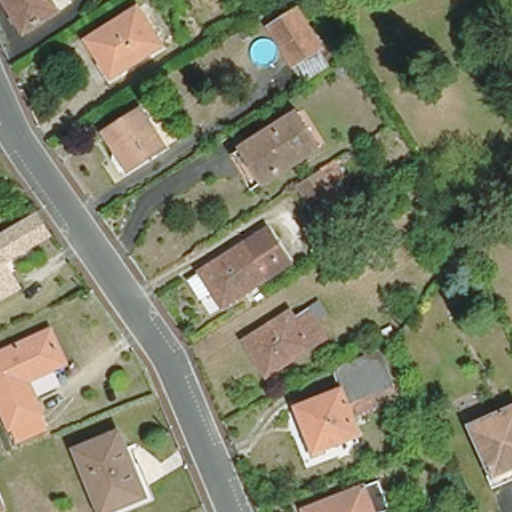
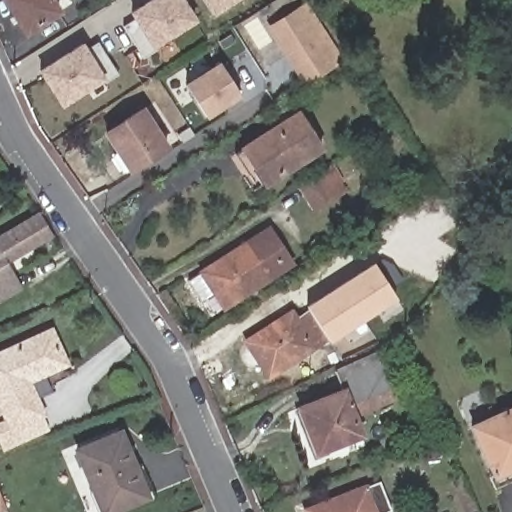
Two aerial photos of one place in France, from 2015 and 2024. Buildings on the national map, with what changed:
unchanged [(61,12),(27,34),(5,0),(53,0),(61,12)]
new [(142,56),(123,26),(133,19),(130,12),(149,0),(183,0),(196,21),(142,56)]
new [(213,12),(204,0),(232,0),(213,12)]
unchanged [(287,66),(262,28),(288,11),(291,15),(300,9),(322,44),(314,50),(312,51),(287,66)]
demolished [(111,86),(103,71),(98,74),(83,49),(136,17),(161,54),(111,86)]
new [(85,50),(98,42),(117,71),(62,106),(38,70),(81,43),(85,50)]
unchanged [(322,64),(298,80),(290,67),(313,52),(322,64)]
new [(217,60),(237,91),(203,114),(183,83),(217,60)]
unchanged [(333,79),(328,71),(339,64),(344,71),(333,79)]
unchanged [(115,158),(106,143),(102,138),(123,125),(140,115),(164,151),(132,172),(127,175),(115,158)]
unchanged [(234,165),(244,158),(294,126),(299,123),(321,156),(316,159),(266,191),(256,198),(234,165)]
unchanged [(315,173),(330,196),(306,211),(292,188),(315,173)]
unchanged [(38,214),(50,234),(7,258),(20,284),(0,295),(0,235),(38,214)]
unchanged [(207,270),(246,245),(251,252),(265,243),(283,270),(224,308),(215,294),(201,273),(207,270)]
new [(396,297),(329,341),(326,344),(309,318),(313,316),(306,304),(373,261),(396,297)]
unchanged [(251,343),(291,318),(295,327),(309,318),(327,345),(268,382),(259,367),(246,347),(251,343)]
unchanged [(0,414),(0,355),(48,336),(62,369),(23,383),(35,416),(6,428),(0,414)]
unchanged [(344,391),(336,373),(378,355),(398,396),(355,416),(364,435),(321,455),(300,411),(344,391)]
unchanged [(495,478),(472,427),(512,409),(512,482),(499,488),(495,478)]
unchanged [(117,512),(102,512),(78,450),(122,434),(148,501),(117,512)]
unchanged [(384,512),(306,512),(374,485),(384,512)]

